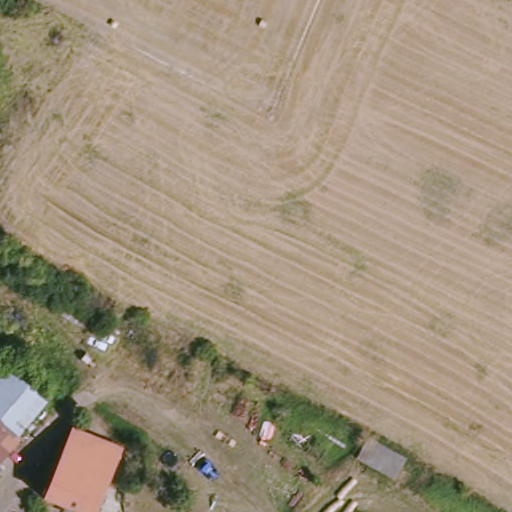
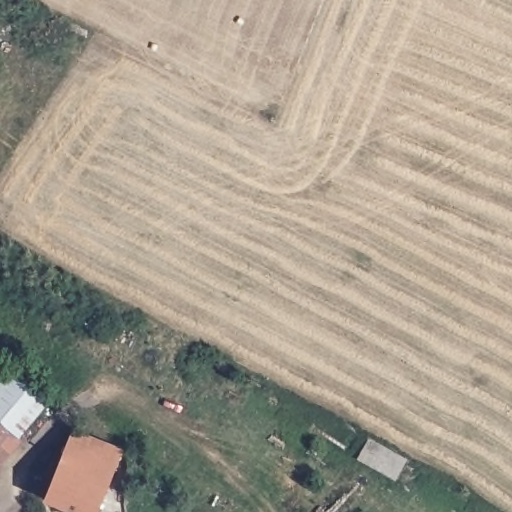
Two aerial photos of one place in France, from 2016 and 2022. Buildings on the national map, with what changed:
unchanged [(4,377),(41,403),(0,449),(0,381),(4,377)]
unchanged [(389,446),(375,470),(335,449),(349,425),(389,446)]
unchanged [(90,512),(87,512),(45,495),(65,446),(72,429),(112,445),(118,448),(110,466),(90,512)]

